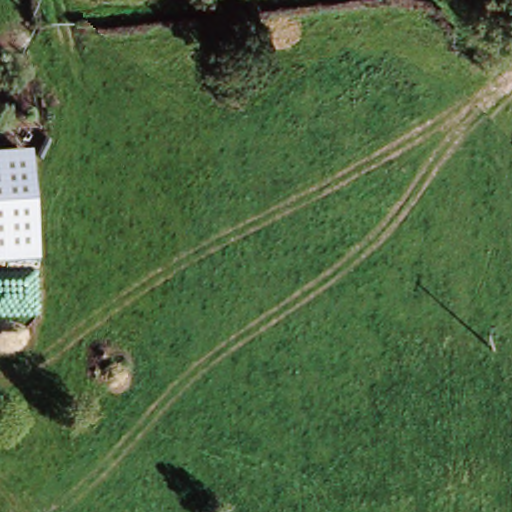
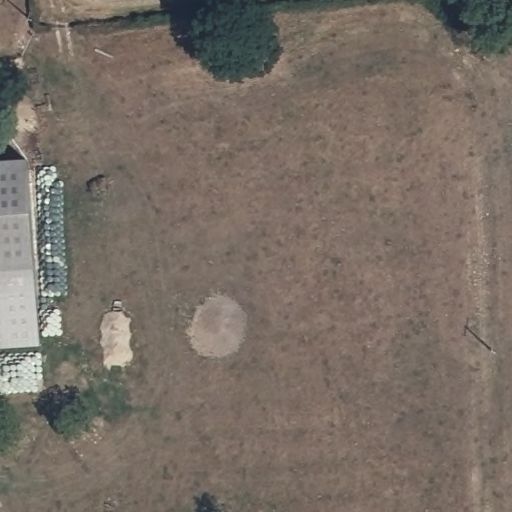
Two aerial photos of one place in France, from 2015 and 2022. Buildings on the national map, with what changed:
unchanged [(30,160),(36,270),(0,272),(0,162),(30,160)]
new [(36,270),(42,348),(0,350),(0,272),(36,270)]

